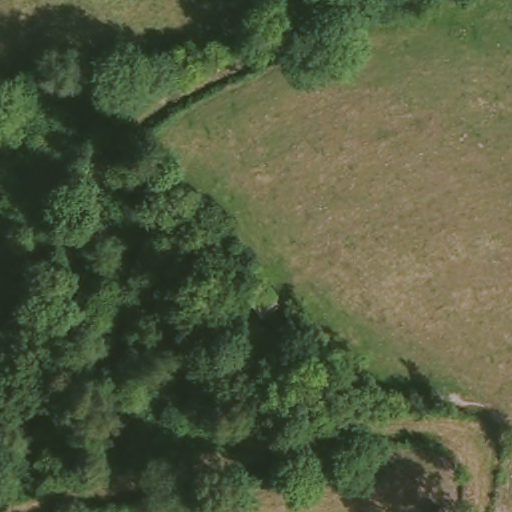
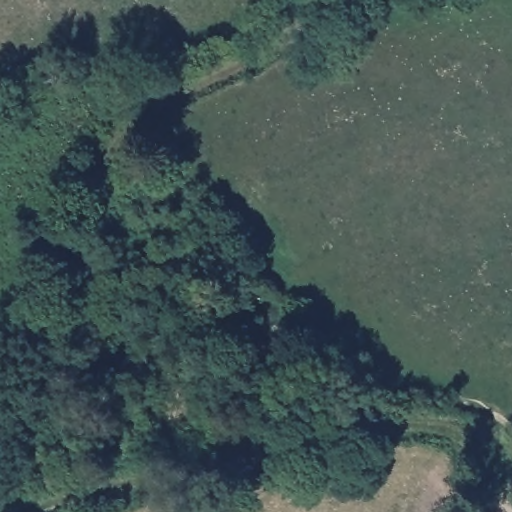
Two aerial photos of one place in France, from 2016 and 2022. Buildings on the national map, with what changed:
unchanged [(265,339),(213,294),(237,267),(288,312),(265,339)]

